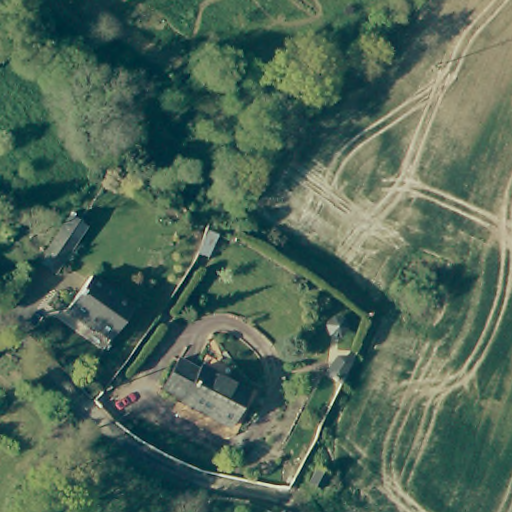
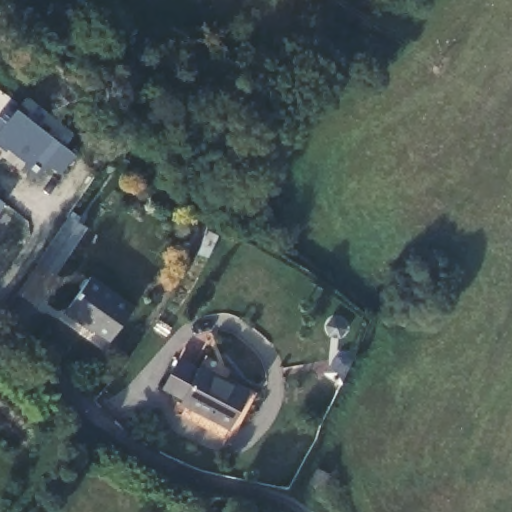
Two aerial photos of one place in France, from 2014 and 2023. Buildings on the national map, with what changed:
new [(49,165),(40,175),(8,150),(4,152),(0,149),(0,113),(8,104),(14,110),(18,105),(77,155),(61,175),(49,165)]
unchanged [(69,215),(85,226),(55,270),(39,260),(45,252),(51,242),(59,231),(69,215)]
unchanged [(112,341),(68,310),(93,277),(136,307),(112,341)]
unchanged [(334,358),(352,362),(345,373),(339,383),(324,374),(334,358)]
unchanged [(228,433),(182,408),(184,403),(163,392),(178,366),(199,376),(202,371),(220,381),(218,385),(247,400),(228,433)]

